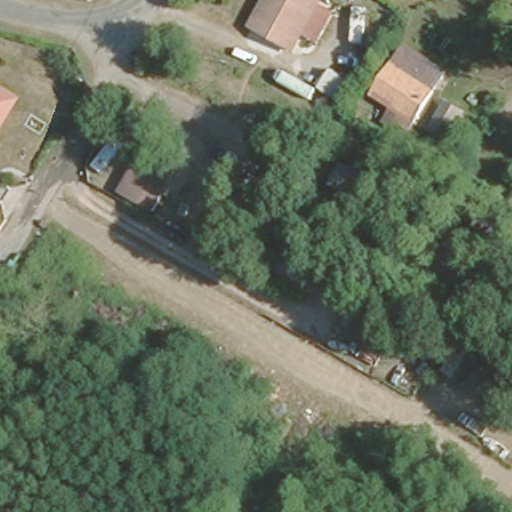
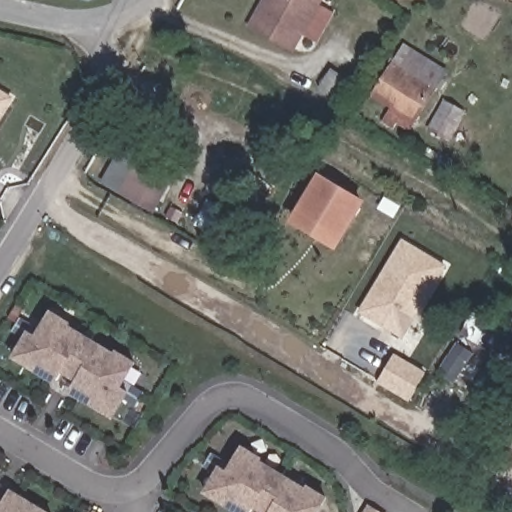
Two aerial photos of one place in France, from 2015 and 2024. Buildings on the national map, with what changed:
new [(320,6),(333,12),(318,45),(302,37),(294,54),(246,29),(255,12),(294,33),(313,0),(323,0),(320,6)]
unchanged [(255,12),(262,0),(313,0),(294,33),(255,12)]
unchanged [(421,111),(409,105),(401,119),(391,112),(400,97),(381,86),(398,57),(410,39),(423,46),(450,62),(421,111)]
unchanged [(12,95),(0,114),(0,86),(12,95)]
new [(448,142),(426,130),(443,100),(465,112),(448,142)]
unchanged [(170,186),(154,213),(119,195),(133,165),(170,186)]
new [(336,251),(290,224),(317,174),(366,201),(336,251)]
new [(401,240),(446,265),(398,348),(355,323),(401,240)]
demolished [(361,290),(395,312),(380,341),(345,320),(361,290)]
new [(75,383),(61,375),(55,385),(10,358),(22,338),(11,332),(20,318),(40,327),(50,310),(71,322),(70,326),(115,352),(116,350),(137,362),(126,382),(143,391),(135,407),(124,401),(113,420),(69,393),(75,383)]
new [(480,367),(463,392),(452,383),(436,372),(457,339),(474,350),(468,360),(480,367)]
new [(211,452),(234,461),(241,444),(263,457),(261,460),(305,487),(307,484),(328,498),(320,512),(258,512),(254,509),(252,512),(233,512),(203,494),(215,472),(204,466),(211,452)]
new [(5,499),(10,488),(50,512),(0,512),(0,496),(5,499)]
new [(380,512),(363,512),(367,505),(380,512)]

